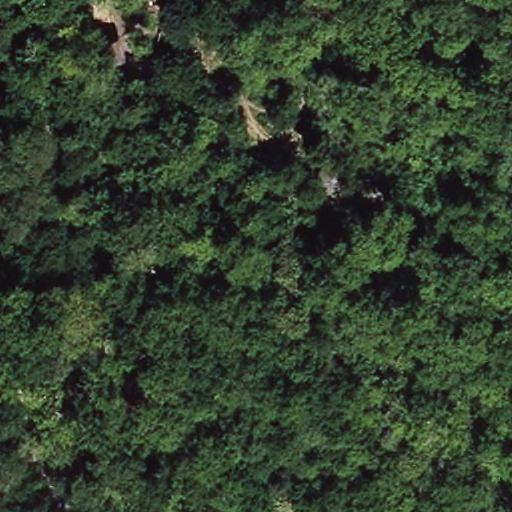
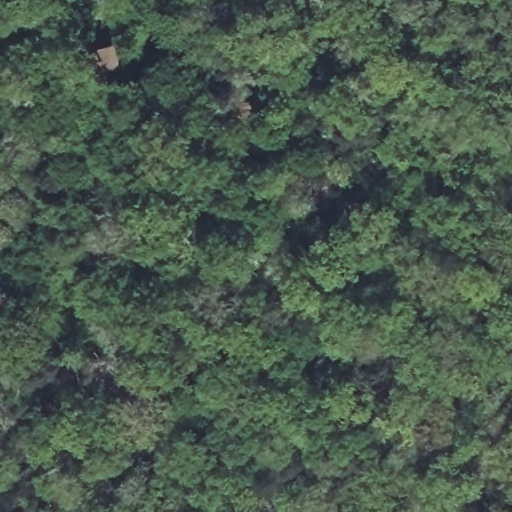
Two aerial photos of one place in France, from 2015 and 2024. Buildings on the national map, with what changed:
[]

